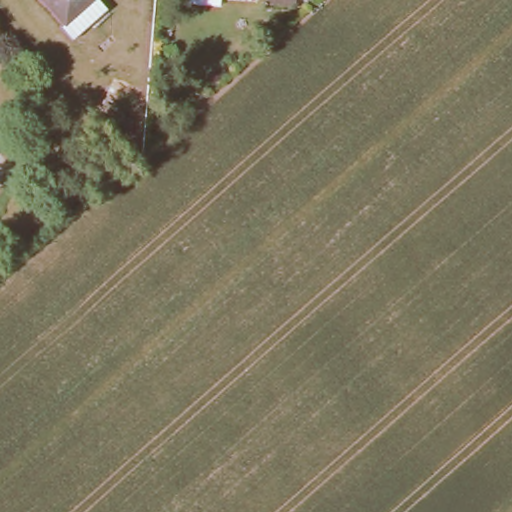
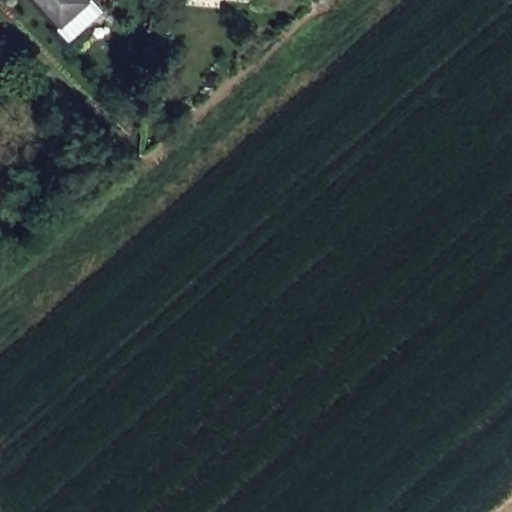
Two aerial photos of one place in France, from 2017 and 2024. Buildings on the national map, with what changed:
unchanged [(82,0),(64,16),(48,0),(82,0)]
unchanged [(272,0),(289,0),(288,1),(272,0)]

